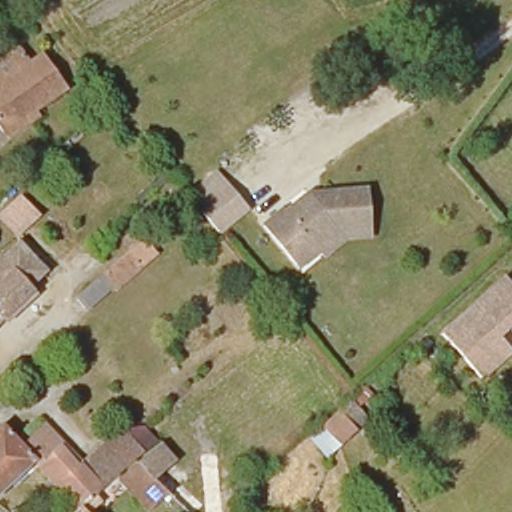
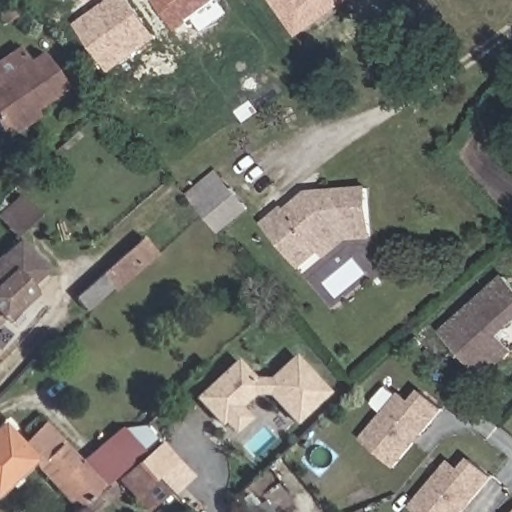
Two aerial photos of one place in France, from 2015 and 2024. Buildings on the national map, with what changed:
new [(111,0),(131,0),(158,38),(110,72),(76,25),(111,0)]
new [(174,28),(153,0),(171,0),(185,19),(174,28)]
new [(188,23),(186,19),(171,0),(217,0),(218,0),(188,23)]
new [(297,37),(270,0),(349,0),(297,37)]
unchanged [(9,138),(3,130),(0,127),(0,78),(1,79),(44,52),(67,87),(37,107),(42,114),(9,138)]
unchanged [(218,234),(213,229),(202,215),(200,212),(190,199),(220,176),(232,191),(232,192),(248,211),(218,234)]
unchanged [(87,209),(71,222),(56,206),(71,191),(87,209)]
unchanged [(348,239),(328,254),(323,248),(300,265),(269,224),(268,222),(289,206),(291,208),(315,192),(374,193),(374,231),(374,238),(348,239)]
new [(18,193),(36,212),(14,232),(0,218),(0,210),(18,193)]
unchanged [(35,289),(39,293),(0,325),(0,264),(22,243),(52,274),(35,289)]
unchanged [(86,291),(125,257),(137,245),(153,261),(127,285),(125,283),(99,306),(86,291)]
unchanged [(512,292),(512,322),(496,337),(510,351),(481,380),(440,339),(501,280),(512,292)]
new [(295,424),(267,394),(253,394),(241,407),(251,419),(233,433),(224,422),(220,425),(194,397),(237,358),(253,376),(269,377),(294,352),(329,391),(295,424)]
demolished [(367,386),(375,395),(360,409),(371,421),(327,458),(310,440),(367,386)]
new [(395,469),(361,440),(401,393),(411,401),(420,391),(444,411),(395,469)]
unchanged [(4,423),(36,459),(0,489),(0,426),(4,423)]
unchanged [(150,504),(127,480),(142,464),(139,461),(81,509),(43,464),(63,447),(82,467),(126,431),(145,456),(163,442),(181,460),(158,481),(166,489),(150,504)]
new [(461,469),(470,458),(494,478),(466,512),(415,512),(410,507),(450,460),(461,469)]
unchanged [(77,512),(81,509),(84,512),(77,512)]

